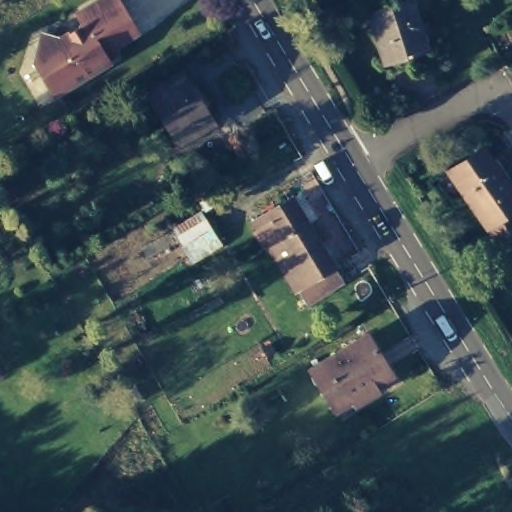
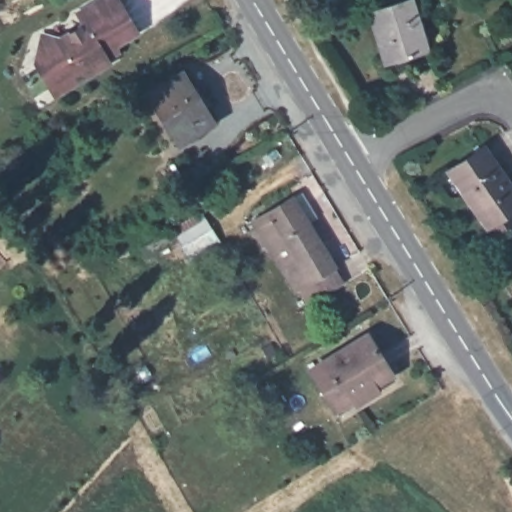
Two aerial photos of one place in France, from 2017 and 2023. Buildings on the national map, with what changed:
unchanged [(33,64),(40,30),(60,36),(78,24),(73,13),(94,0),(119,0),(139,34),(116,47),(119,53),(108,61),(109,66),(53,98),(33,64)]
unchanged [(384,62),(365,17),(402,0),(405,0),(426,42),(384,62)]
unchanged [(220,122),(186,144),(155,97),(190,76),(220,122)]
unchanged [(475,150),(512,196),(512,202),(508,207),(512,212),(512,222),(493,237),(483,226),(444,177),(475,150)]
unchanged [(319,217),(310,224),(344,280),(309,300),(297,282),(296,284),(258,223),(305,193),(319,217)]
unchanged [(226,247),(189,268),(171,230),(206,210),(226,247)]
unchanged [(368,340),(390,377),(342,405),(320,367),(368,340)]

